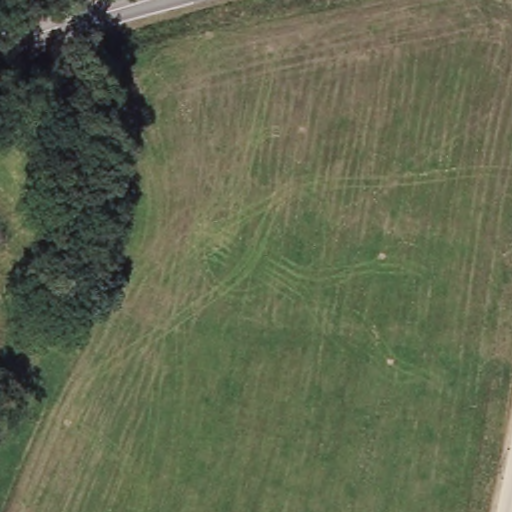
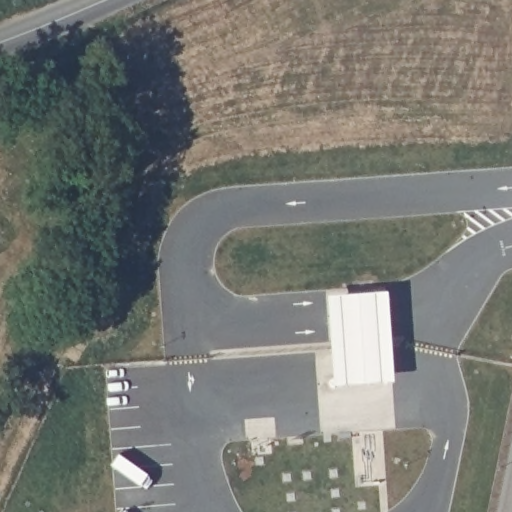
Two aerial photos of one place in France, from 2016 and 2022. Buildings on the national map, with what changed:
new [(385,293),(392,383),(333,387),(326,297),(385,293)]

